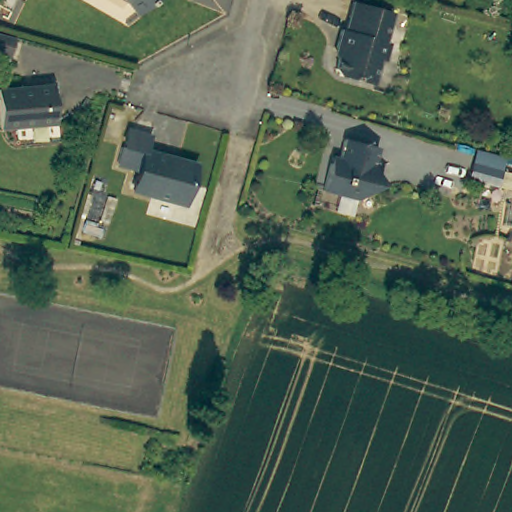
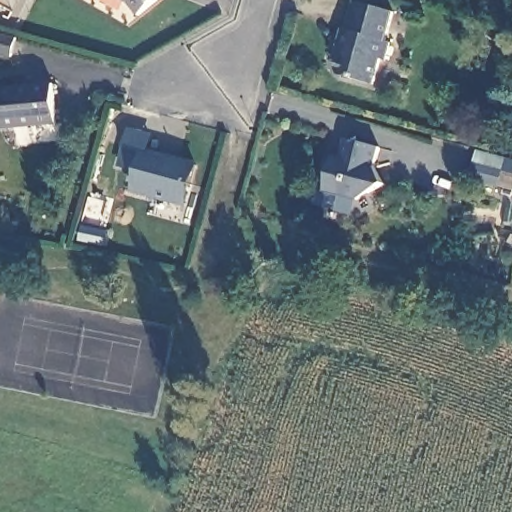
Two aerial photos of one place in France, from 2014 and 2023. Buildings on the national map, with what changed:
unchanged [(135,1),(133,0),(163,0),(146,14),(135,1)]
unchanged [(346,28),(350,29),(356,0),(359,0),(396,9),(388,38),(394,39),(389,56),(384,56),(377,80),(343,72),(342,67),(346,46),(342,45),(346,28)]
unchanged [(16,62),(0,58),(0,36),(23,42),(16,62)]
unchanged [(56,85),(61,127),(4,132),(0,90),(56,85)]
unchanged [(187,202),(141,190),(146,169),(127,164),(136,131),(155,136),(151,151),(202,165),(197,185),(192,204),(187,202)]
unchanged [(374,163),(385,181),(359,197),(326,190),(331,161),(340,162),(345,135),(379,144),(374,163)]
unchanged [(505,159),(502,173),(472,166),(475,152),(505,159)]

